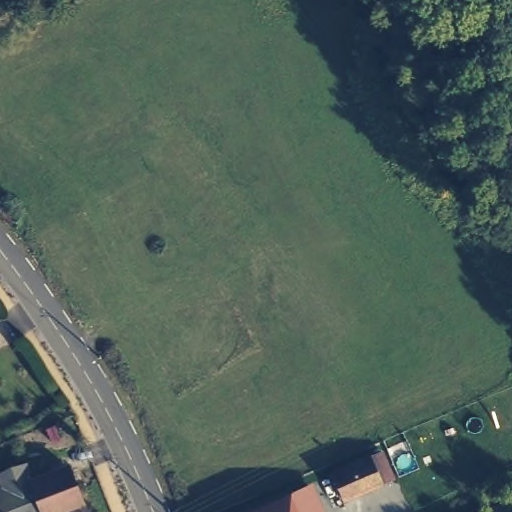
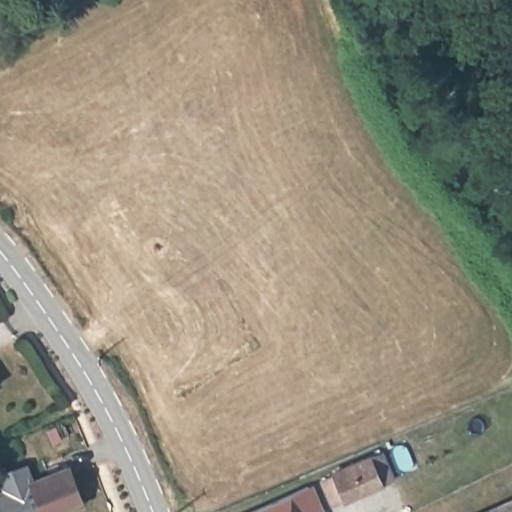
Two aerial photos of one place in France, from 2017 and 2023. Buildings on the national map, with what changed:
unchanged [(326,458),(364,442),(367,451),(378,446),(386,465),(374,470),(336,485),(326,458)]
unchanged [(69,470),(83,505),(63,512),(0,512),(0,493),(12,488),(6,475),(28,467),(34,482),(69,470)]
unchanged [(321,478),(335,512),(239,512),(321,478)]
unchanged [(512,493),(512,512),(469,512),(512,493)]

